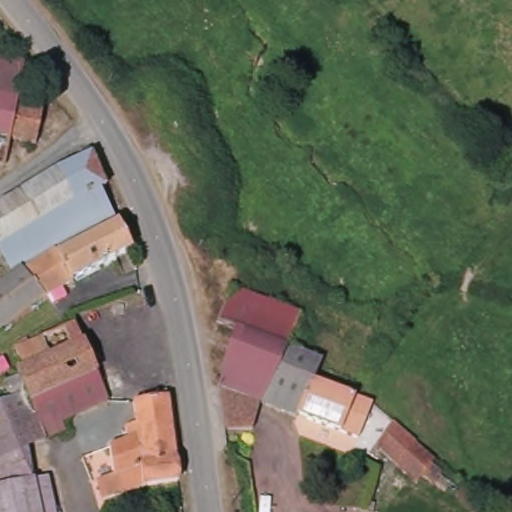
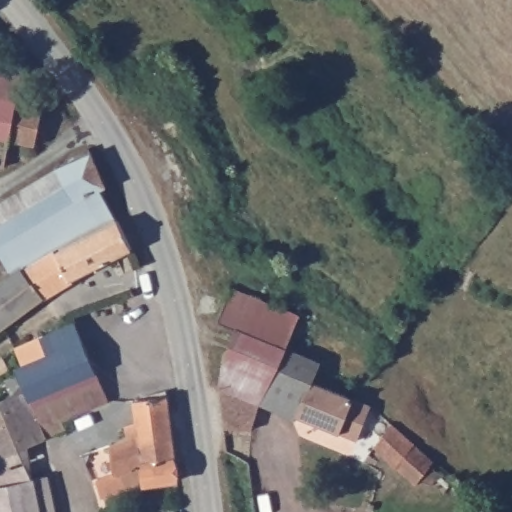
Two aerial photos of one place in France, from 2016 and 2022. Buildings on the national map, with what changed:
unchanged [(14,142),(10,166),(9,167),(0,165),(0,57),(29,62),(21,104),(46,108),(39,145),(14,142)]
unchanged [(0,247),(0,232),(2,207),(95,154),(109,185),(106,192),(120,221),(77,243),(26,270),(49,300),(11,326),(0,333),(0,287),(17,273),(0,247)]
unchanged [(77,243),(120,221),(134,250),(79,279),(49,300),(26,270),(77,243)]
unchanged [(234,288),(302,318),(289,351),(265,406),(262,405),(241,396),(224,390),(226,368),(225,363),(238,330),(220,323),(234,288)]
unchanged [(4,402),(14,397),(9,383),(0,362),(21,355),(19,351),(41,341),(78,323),(110,405),(64,421),(69,431),(59,434),(29,446),(0,457),(0,403),(1,402),(4,402)]
unchanged [(289,351),(322,365),(320,369),(315,383),(374,407),(359,440),(300,416),(299,420),(265,406),(289,351)]
unchanged [(241,396),(262,405),(257,432),(230,431),(224,390),(241,396)]
unchanged [(117,475),(111,450),(132,440),(128,427),(138,422),(138,410),(136,404),(171,393),(180,482),(148,488),(106,500),(99,482),(117,475)]
unchanged [(398,422),(439,462),(429,473),(439,485),(427,496),(416,486),(413,489),(373,450),(398,422)]
unchanged [(34,481),(0,487),(0,457),(29,446),(34,481)]
unchanged [(44,478),(52,512),(0,512),(0,487),(34,481),(44,478)]

